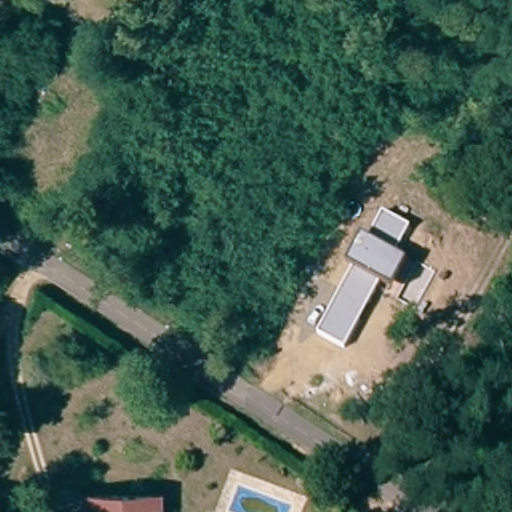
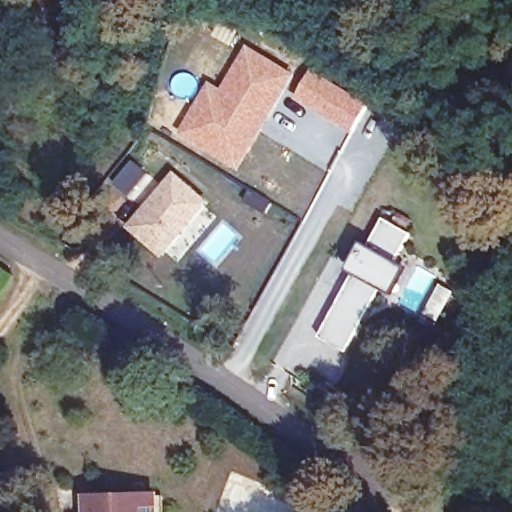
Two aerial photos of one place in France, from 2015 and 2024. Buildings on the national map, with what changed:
new [(207,78),(219,86),(246,42),(296,73),(237,169),(173,131),(207,78)]
new [(312,67),(370,103),(350,133),(293,98),(312,67)]
new [(129,158),(146,172),(127,195),(110,180),(129,158)]
new [(161,256),(126,224),(173,172),(208,201),(161,256)]
unchanged [(340,289),(351,269),(345,266),(360,238),(366,241),(380,214),(408,228),(393,256),(406,263),(391,291),(378,284),(367,304),(359,319),(344,348),(316,333),(332,305),(340,289)]
unchanged [(155,496),(156,512),(87,512),(86,497),(155,496)]

